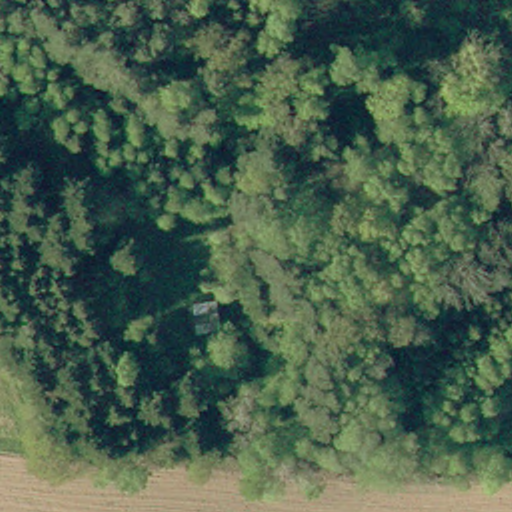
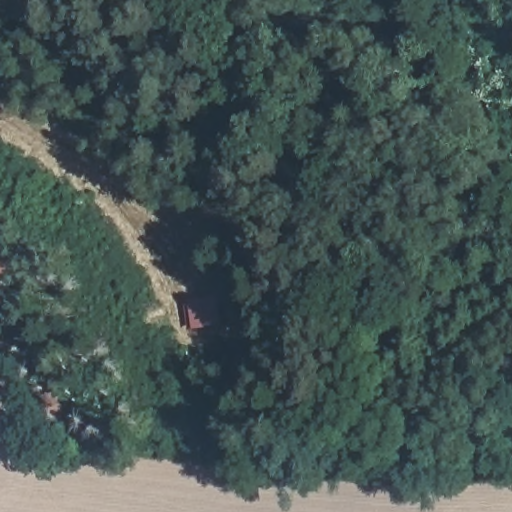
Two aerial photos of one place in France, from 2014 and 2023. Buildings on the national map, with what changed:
unchanged [(223,330),(197,335),(193,301),(218,299),(223,330)]

